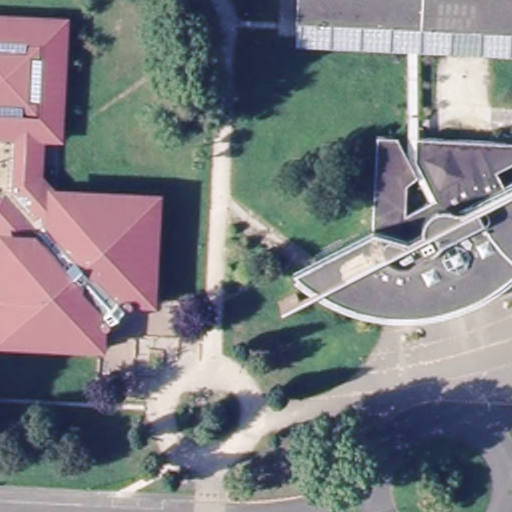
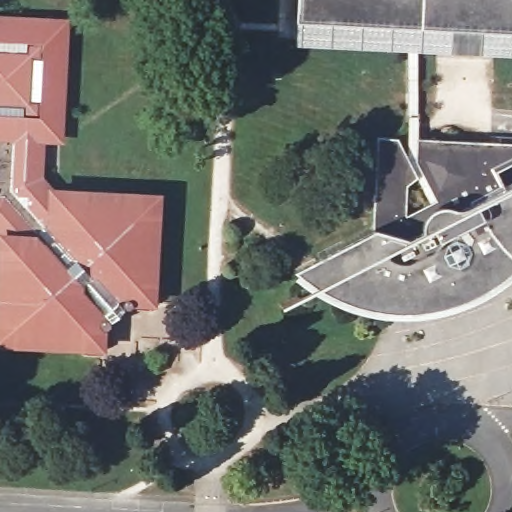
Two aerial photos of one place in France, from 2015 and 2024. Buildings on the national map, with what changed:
unchanged [(512,33),(512,52),(434,48),(423,47),(288,40),(290,0),(309,0),(308,21),(512,33)]
unchanged [(308,21),(309,0),(512,0),(512,33),(308,21)]
unchanged [(109,325),(105,326),(104,352),(94,352),(94,345),(0,340),(0,265),(1,243),(0,242),(0,14),(66,17),(62,124),(49,137),(42,137),(39,175),(54,190),(157,196),(151,295),(155,295),(154,303),(133,302),(128,307),(121,305),(108,318),(110,321),(109,325)]
unchanged [(507,177),(512,190),(512,275),(504,281),(486,292),(462,303),(441,308),(422,311),(399,311),(375,310),(352,303),(330,294),(312,283),(298,272),(382,229),(388,139),(408,140),(418,160),(423,47),(434,48),(429,141),(512,146),(512,174),(507,177)]

